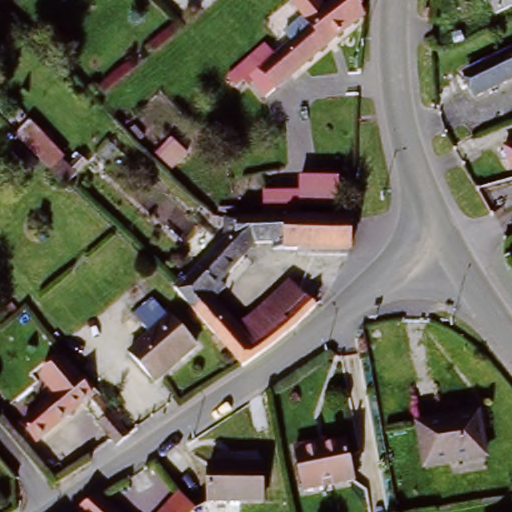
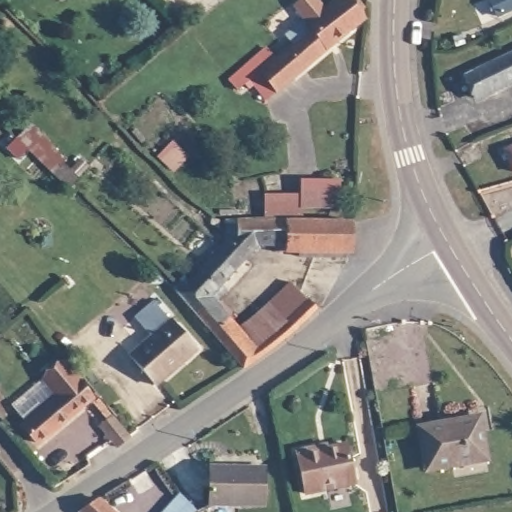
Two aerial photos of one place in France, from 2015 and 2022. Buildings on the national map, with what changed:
unchanged [(264,45),(302,14),(288,0),(348,0),(251,81),(241,71),(230,80),(217,67),(254,33),(264,45)]
unchanged [(495,15),(490,0),(512,0),(512,8),(495,15)]
unchanged [(512,50),(512,82),(482,93),(472,64),(512,50)]
unchanged [(85,172),(68,189),(40,161),(25,177),(2,154),(32,123),(85,172)]
unchanged [(154,154),(174,135),(193,155),(173,173),(154,154)]
unchanged [(512,142),(512,151),(508,143),(512,142)]
unchanged [(311,208),(256,208),(256,194),(303,194),(303,185),(350,185),(350,202),(312,201),(311,208)]
unchanged [(282,280),(298,294),(315,308),(283,343),(249,366),(174,297),(258,216),(265,242),(206,296),(233,324),(260,300),(282,280)]
unchanged [(265,242),(258,216),(350,218),(352,242),(265,242)]
unchanged [(155,381),(132,355),(153,336),(137,318),(152,305),(192,350),(155,381)]
unchanged [(117,424),(92,400),(35,445),(17,427),(55,395),(39,377),(57,362),(73,380),(80,373),(140,432),(124,441),(111,429),(117,424)]
unchanged [(438,418),(437,405),(477,399),(482,410),(492,460),(423,472),(415,423),(438,418)]
unchanged [(343,439),(357,476),(312,492),(298,455),(343,439)]
unchanged [(266,465),(265,504),(207,505),(208,463),(266,465)]
unchanged [(194,512),(159,512),(178,488),(197,510),(194,512)]
unchanged [(101,495),(119,512),(92,512),(83,504),(101,495)]

